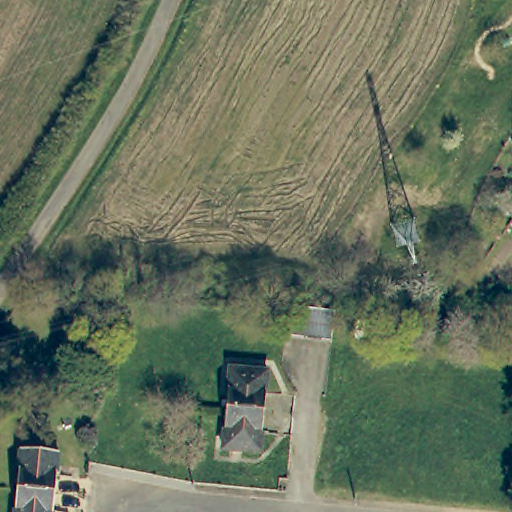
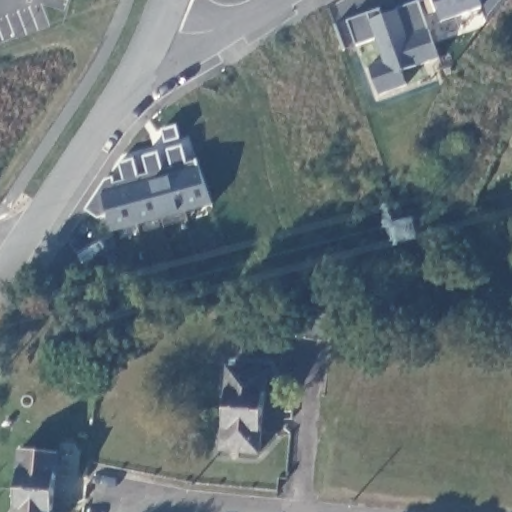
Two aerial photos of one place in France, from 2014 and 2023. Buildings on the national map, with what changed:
new [(403,69),(407,86),(379,97),(368,66),(383,61),(375,38),(356,44),(348,21),(415,0),(420,0),(439,59),(403,69)]
new [(487,21),(483,9),(445,23),(437,0),(504,0),(487,21)]
new [(177,127),(180,140),(164,144),(161,131),(177,127)]
unchanged [(512,143),(510,142),(512,139),(512,143)]
new [(106,179),(112,177),(113,182),(122,180),(118,163),(133,159),(137,176),(146,174),(142,157),(157,153),(162,170),(170,167),(166,151),(182,147),(186,162),(196,161),(211,206),(114,232),(110,215),(100,218),(85,209),(106,179)]
unchanged [(293,306),(340,311),(337,341),(290,336),(293,306)]
unchanged [(225,408),(229,368),(267,372),(263,412),(225,408)]
unchanged [(260,452),(221,447),(225,408),(263,412),(260,452)]
unchanged [(17,489),(21,450),(59,453),(55,492),(17,489)]
unchanged [(15,512),(17,489),(55,492),(53,512),(15,512)]

